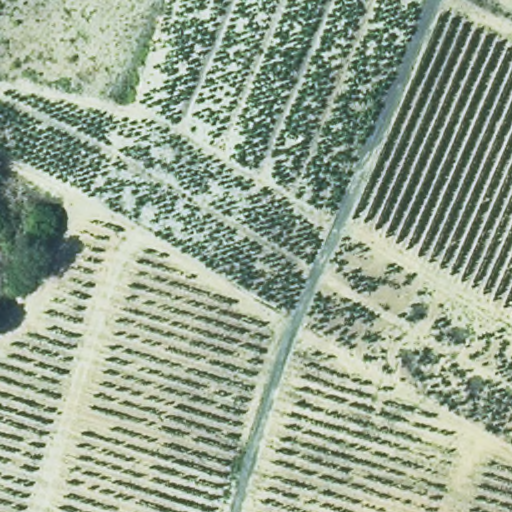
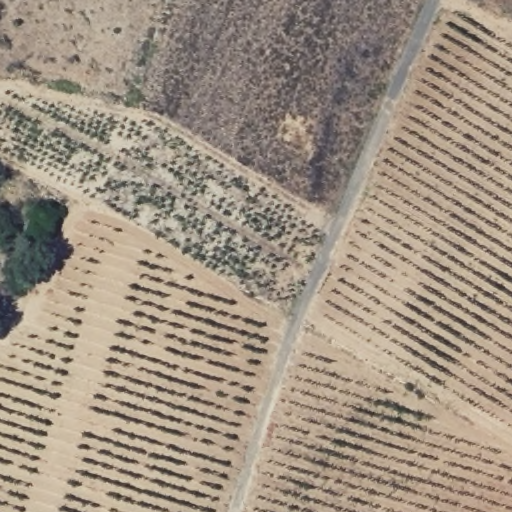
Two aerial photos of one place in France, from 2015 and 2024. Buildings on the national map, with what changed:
[]

